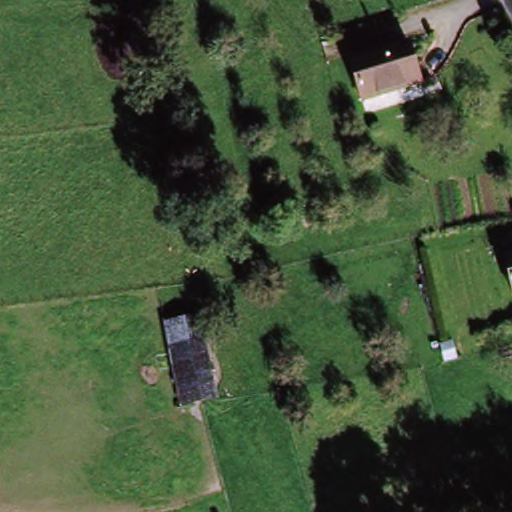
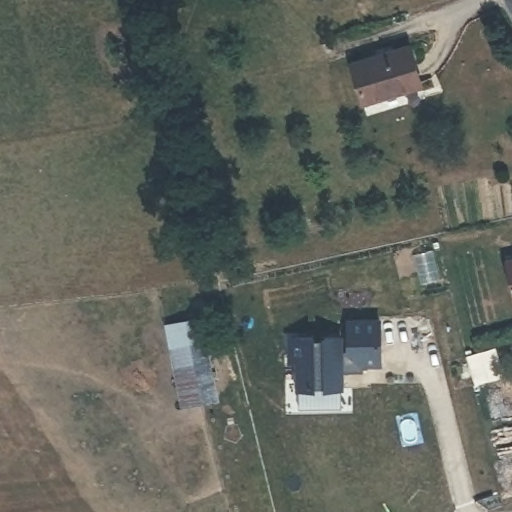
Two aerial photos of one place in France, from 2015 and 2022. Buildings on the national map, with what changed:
unchanged [(407,56),(411,97),(355,101),(353,61),(407,56)]
unchanged [(512,293),(508,261),(512,260),(512,293)]
unchanged [(162,325),(202,318),(218,402),(177,410),(162,325)]
new [(314,339),(314,340),(325,340),(325,339),(341,338),(342,352),(349,352),(349,322),(380,322),(381,366),(363,366),(363,373),(342,373),(342,389),(327,389),(327,388),(315,388),(315,390),(299,390),(299,361),(291,362),(291,339),(314,339)]

